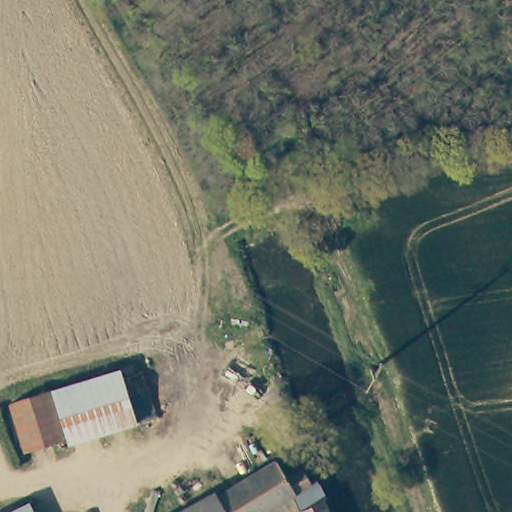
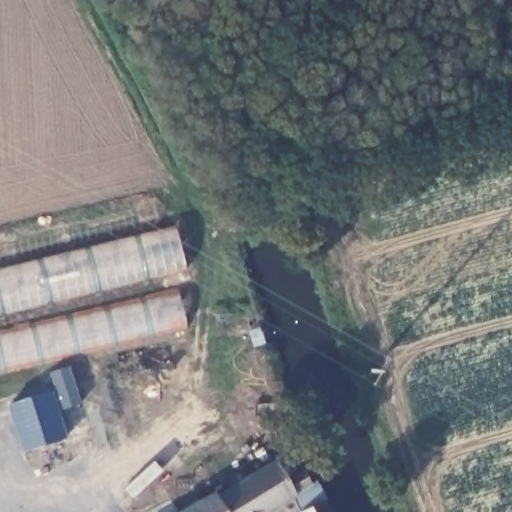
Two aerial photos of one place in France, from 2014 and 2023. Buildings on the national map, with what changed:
new [(185,269),(0,314),(0,270),(176,228),(185,269)]
new [(184,328),(0,372),(0,332),(177,291),(184,328)]
unchanged [(69,443),(28,456),(12,408),(55,393),(69,443)]
unchanged [(315,490),(278,512),(185,512),(216,494),(220,502),(223,500),(281,466),(292,483),(305,474),(307,477),(315,490)]
unchanged [(327,501),(332,512),(306,512),(327,501)]
demolished [(29,505),(33,512),(18,512),(29,505)]

